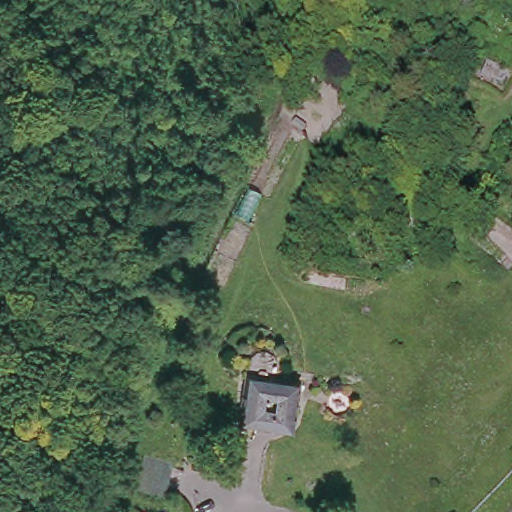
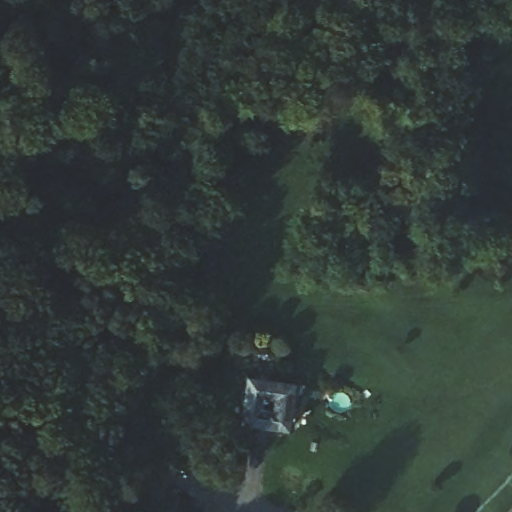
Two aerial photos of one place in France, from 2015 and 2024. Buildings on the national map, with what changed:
unchanged [(301,378),(286,428),(241,415),(256,365),(301,378)]

